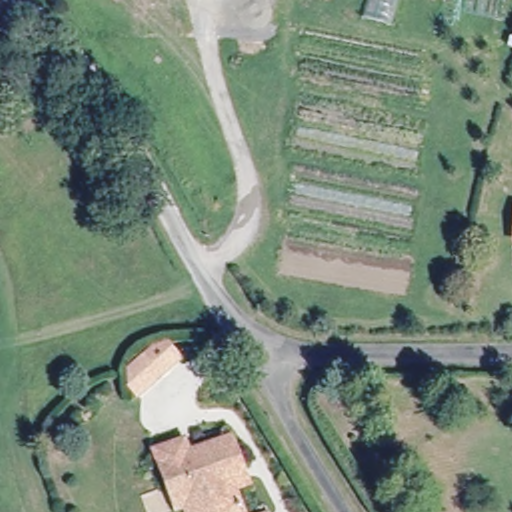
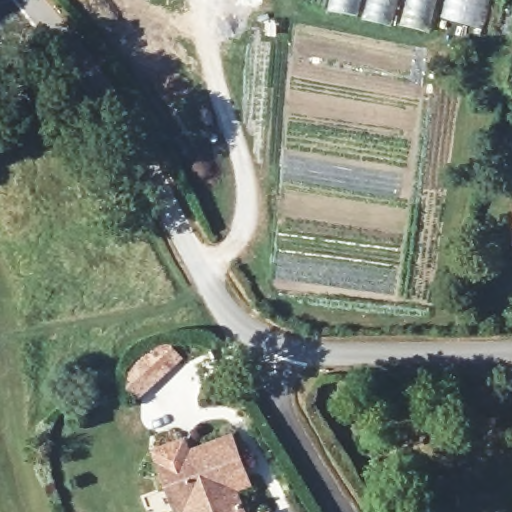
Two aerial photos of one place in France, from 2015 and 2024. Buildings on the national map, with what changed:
new [(427,33),(328,11),(331,0),(490,0),(482,28),(432,15),(427,33)]
unchanged [(185,356),(139,397),(125,389),(126,368),(152,345),(168,339),(185,356)]
unchanged [(186,502),(177,506),(168,482),(154,447),(182,436),(188,448),(230,431),(239,456),(247,475),(234,482),(239,495),(242,493),(246,503),(242,505),(246,512),(190,512),(186,502)]
unchanged [(268,509),(269,512),(260,512),(268,509)]

